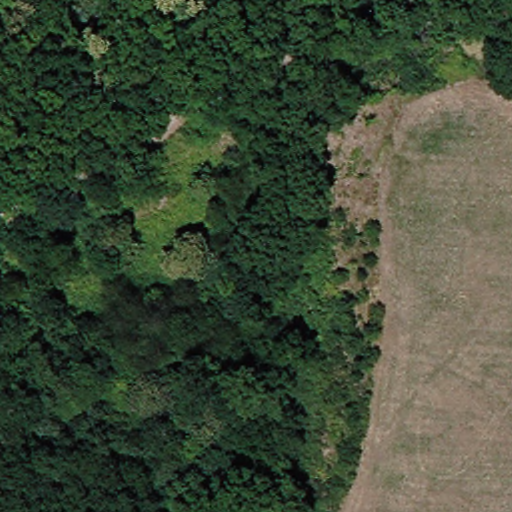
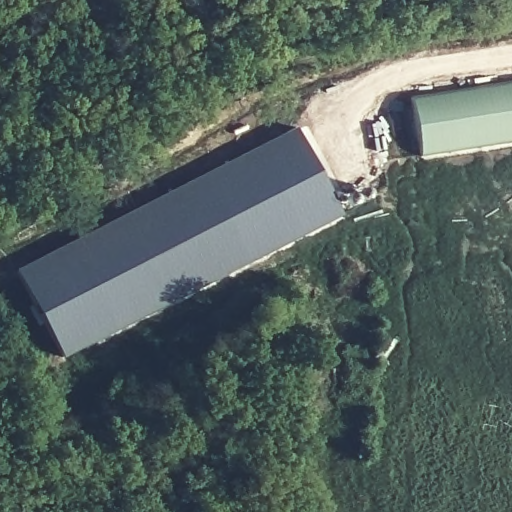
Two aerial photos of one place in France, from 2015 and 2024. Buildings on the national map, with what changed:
new [(512,81),(512,142),(419,156),(409,99),(512,81)]
new [(294,127),(339,216),(59,358),(14,270),(294,127)]

